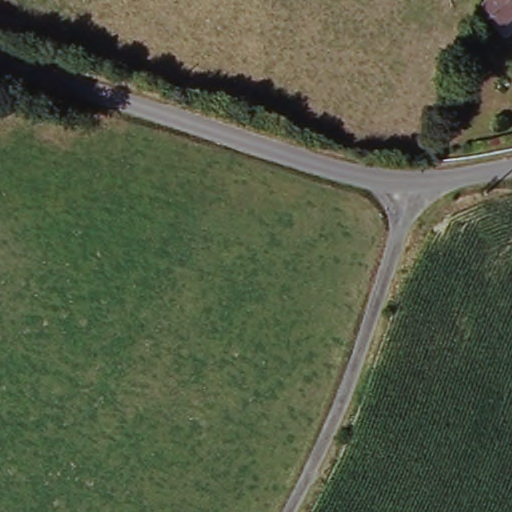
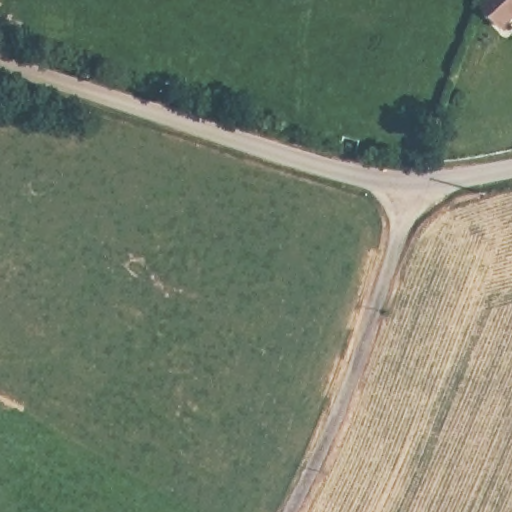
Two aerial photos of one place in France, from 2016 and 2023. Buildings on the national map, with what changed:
unchanged [(482,1),(484,0),(512,0),(512,14),(500,24),(482,1)]

